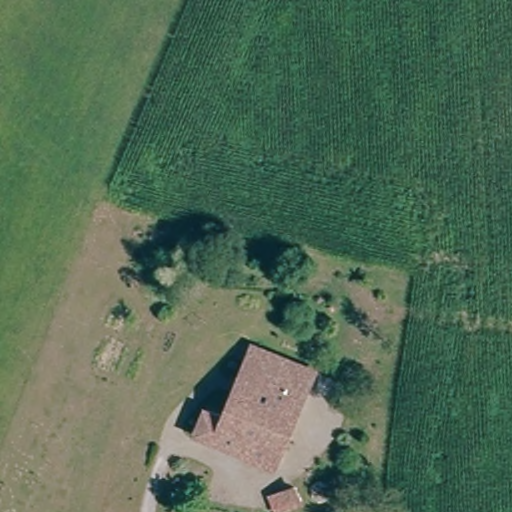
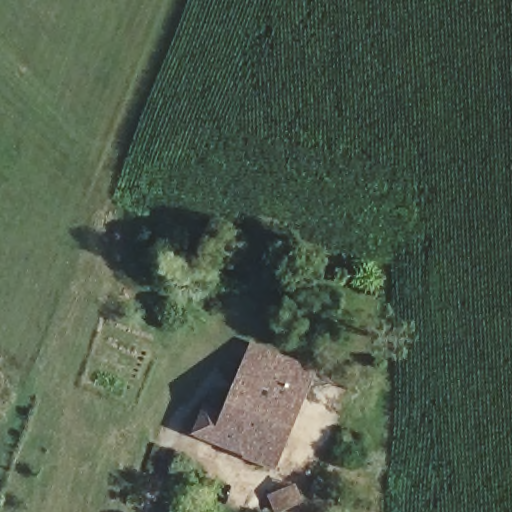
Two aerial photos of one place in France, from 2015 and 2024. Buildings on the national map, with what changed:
unchanged [(224,423),(251,351),(270,358),(311,373),(303,394),(275,470),(245,460),(245,457),(193,437),(201,415),(224,423)]
unchanged [(285,508),(286,512),(277,512),(285,508)]

